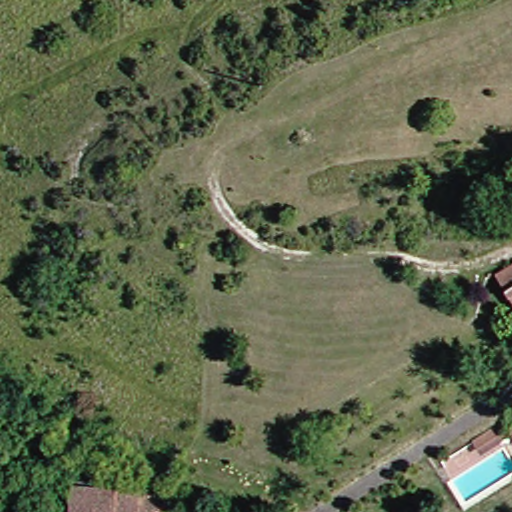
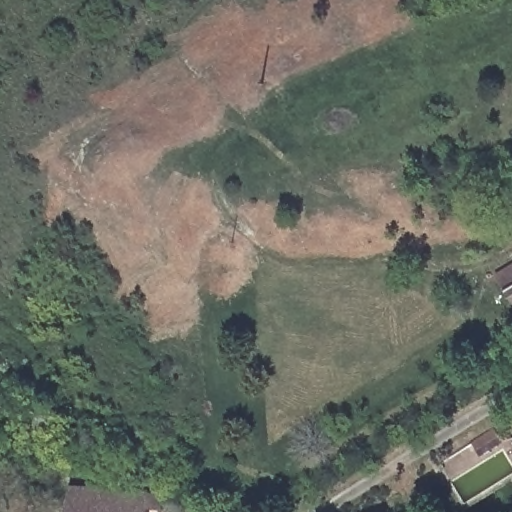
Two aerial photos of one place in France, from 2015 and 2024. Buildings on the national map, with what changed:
unchanged [(512,268),(512,297),(499,275),(512,268)]
unchanged [(68,486),(165,494),(165,512),(156,512),(146,511),(146,512),(67,512),(68,486)]

